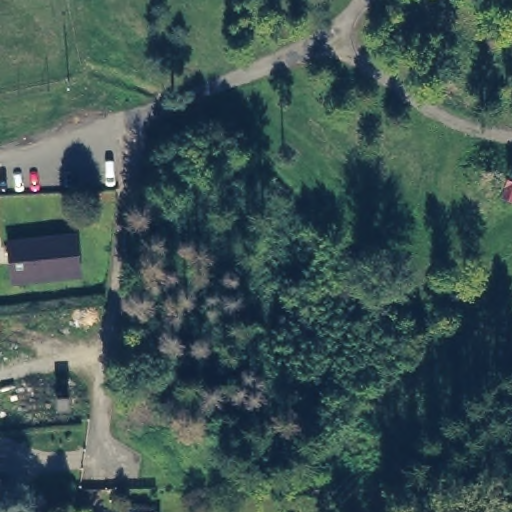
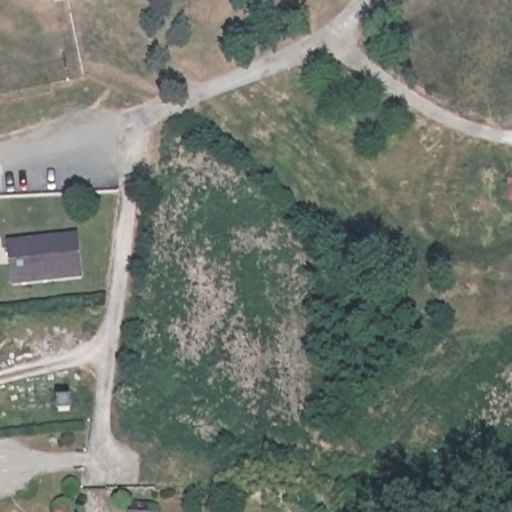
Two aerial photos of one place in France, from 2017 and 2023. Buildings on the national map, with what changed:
unchanged [(509,190),(512,180),(512,191),(509,190)]
unchanged [(80,277),(13,282),(10,241),(77,236),(80,277)]

